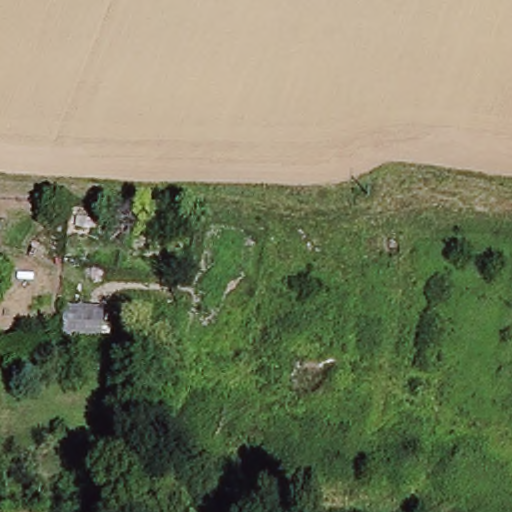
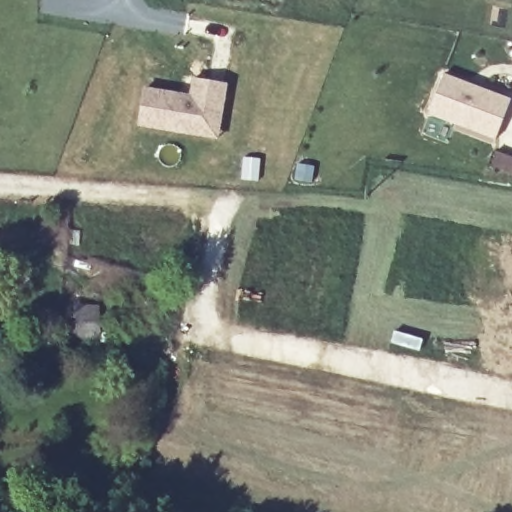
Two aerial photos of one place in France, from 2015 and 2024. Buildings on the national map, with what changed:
new [(445,74),(512,96),(498,138),(430,114),(445,74)]
new [(200,133),(141,124),(146,89),(192,95),(195,78),(227,83),(224,109),(220,136),(200,133)]

